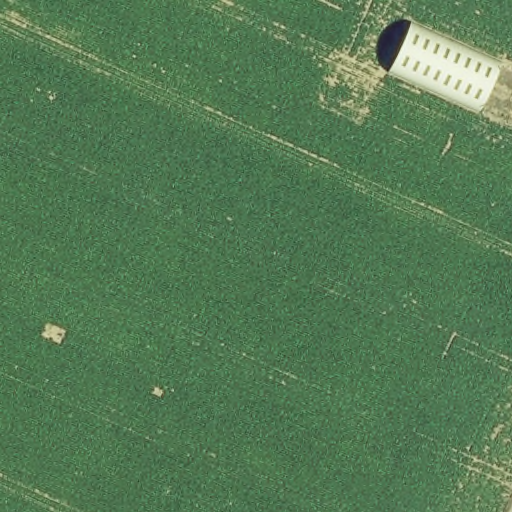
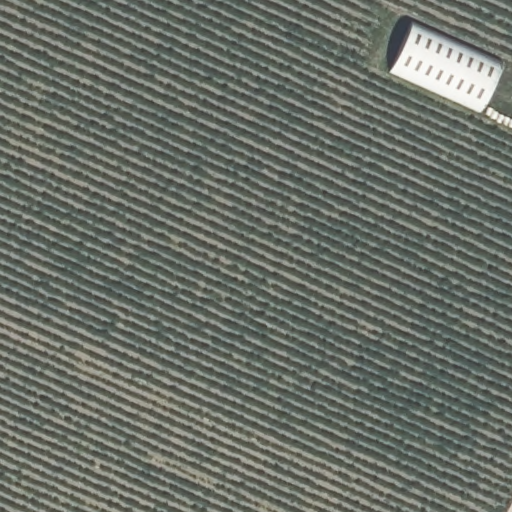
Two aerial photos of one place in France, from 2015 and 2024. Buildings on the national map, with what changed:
unchanged [(499,63),(476,114),(386,73),(409,21),(499,63)]

